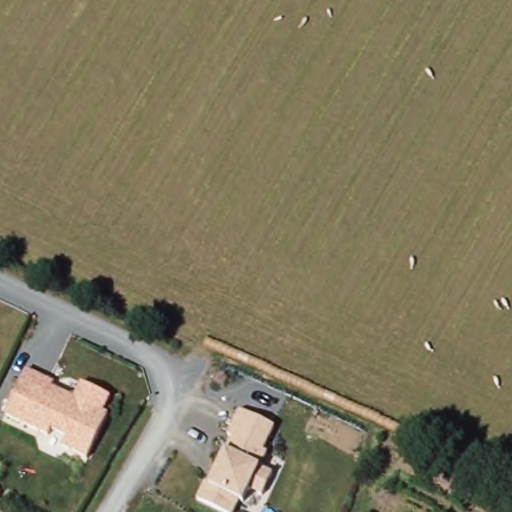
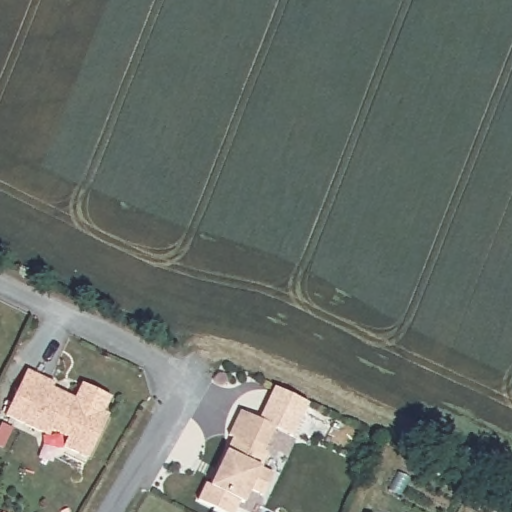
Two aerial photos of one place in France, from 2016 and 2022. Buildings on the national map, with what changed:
unchanged [(52,391),(65,397),(75,401),(82,386),(111,400),(104,415),(109,417),(88,461),(63,450),(67,440),(51,432),(49,438),(5,417),(27,372),(55,386),(52,391)]
new [(306,402),(292,435),(277,428),(258,420),(273,387),(306,402)]
unchanged [(267,451),(270,452),(261,468),(273,474),(262,496),(252,491),(245,506),(239,503),(235,512),(218,512),(194,501),(203,482),(210,487),(230,441),(226,438),(240,410),(276,429),(267,451)]

